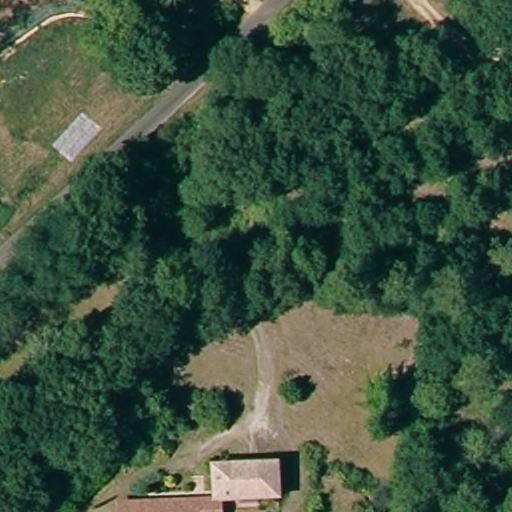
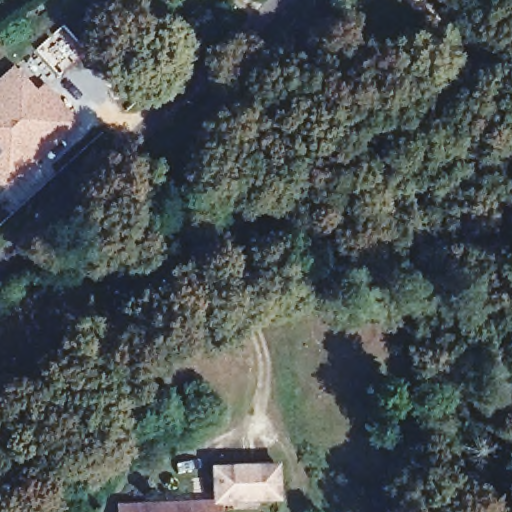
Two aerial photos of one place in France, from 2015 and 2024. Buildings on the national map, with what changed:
new [(0,184),(0,155),(1,153),(0,152),(0,78),(14,66),(34,88),(42,82),(80,124),(6,191),(0,184)]
unchanged [(279,499),(211,499),(210,468),(278,467),(279,499)]
unchanged [(146,503),(198,504),(198,512),(145,512),(146,503)]

